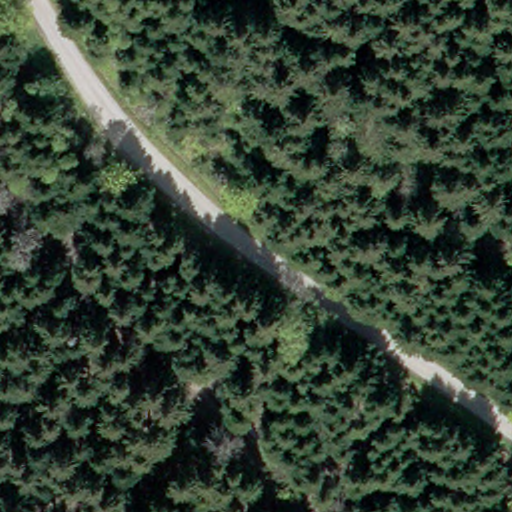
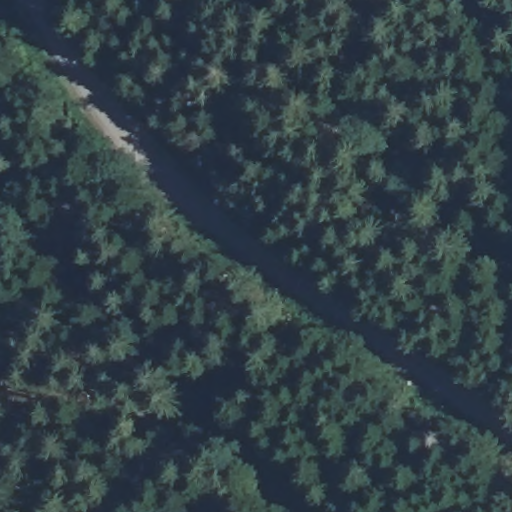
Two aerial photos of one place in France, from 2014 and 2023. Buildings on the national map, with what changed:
[]

